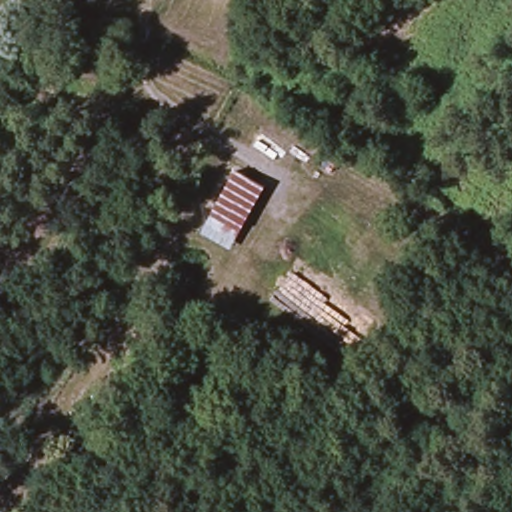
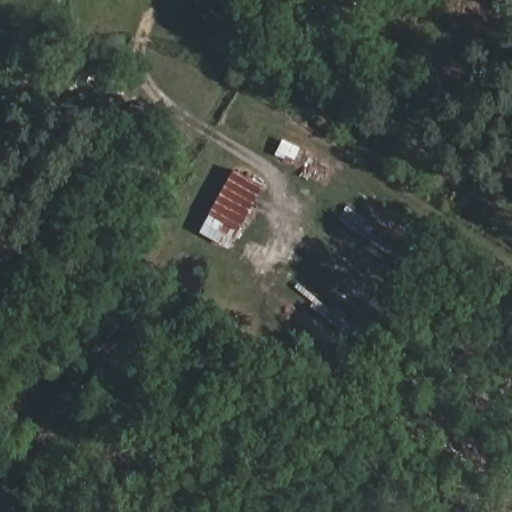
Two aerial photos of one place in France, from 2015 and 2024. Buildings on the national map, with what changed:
unchanged [(235,234),(208,217),(232,173),(261,190),(235,234)]
unchanged [(131,372),(109,402),(93,393),(99,382),(106,386),(120,364),(131,372)]

